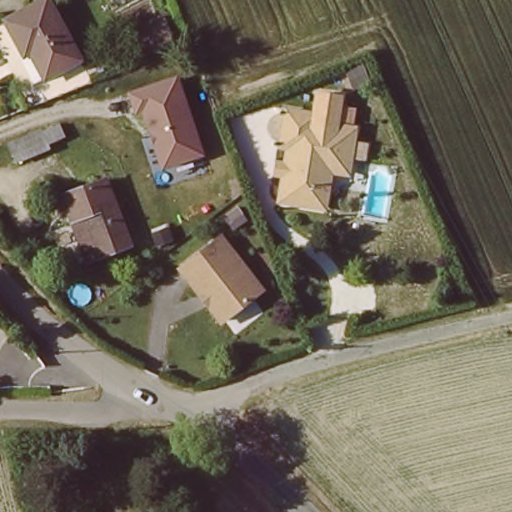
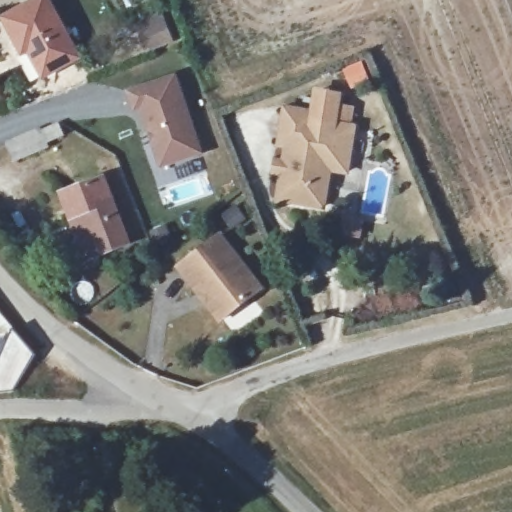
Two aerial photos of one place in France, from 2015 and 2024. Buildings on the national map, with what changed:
unchanged [(4,19),(48,2),(76,68),(38,81),(28,53),(18,55),(4,19)]
unchanged [(175,44),(140,57),(129,27),(163,13),(175,44)]
unchanged [(205,155),(160,170),(141,112),(133,114),(127,91),(177,73),(205,155)]
unchanged [(341,121),(358,124),(348,178),(330,174),(325,211),(274,202),(277,178),(271,176),(274,157),(279,158),(282,149),(276,148),(283,104),(311,109),(314,89),(346,95),(341,121)]
unchanged [(67,139),(14,163),(5,142),(59,122),(67,139)]
unchanged [(104,174),(135,244),(109,254),(94,260),(77,220),(65,189),(104,174)]
unchanged [(183,271),(221,238),(225,242),(265,289),(249,302),(226,321),(213,306),(204,296),(183,271)]
new [(15,330),(6,342),(0,339),(0,338),(0,312),(15,330)]
new [(6,342),(15,330),(35,354),(13,392),(0,392),(0,356),(6,342)]

